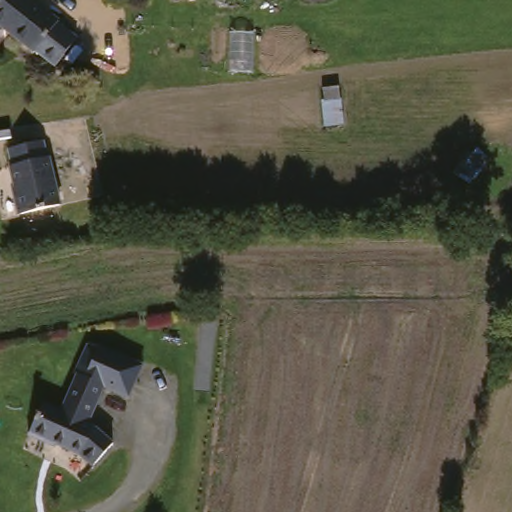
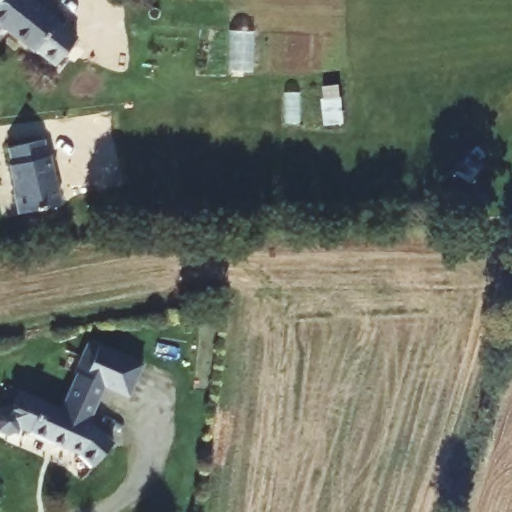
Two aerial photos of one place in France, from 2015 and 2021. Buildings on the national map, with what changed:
unchanged [(28,0),(72,45),(45,71),(0,28),(0,0),(28,0)]
unchanged [(7,211),(4,190),(9,189),(6,160),(9,160),(8,146),(46,142),(54,208),(7,211)]
unchanged [(43,439),(24,431),(38,399),(56,407),(72,371),(69,370),(82,341),(93,346),(94,342),(139,361),(124,394),(99,384),(84,419),(88,421),(87,423),(92,426),(109,441),(88,463),(75,451),(43,437),(43,439)]

